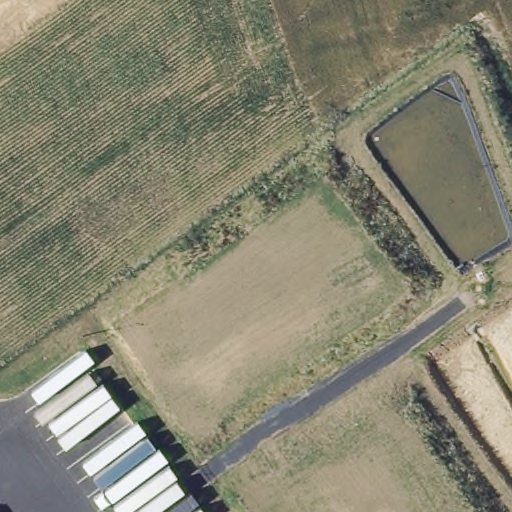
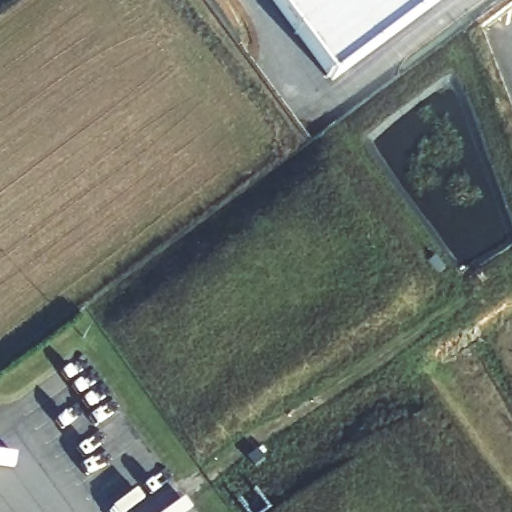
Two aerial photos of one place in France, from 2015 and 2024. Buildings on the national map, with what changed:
new [(437,0),(333,76),(277,0),(437,0)]

